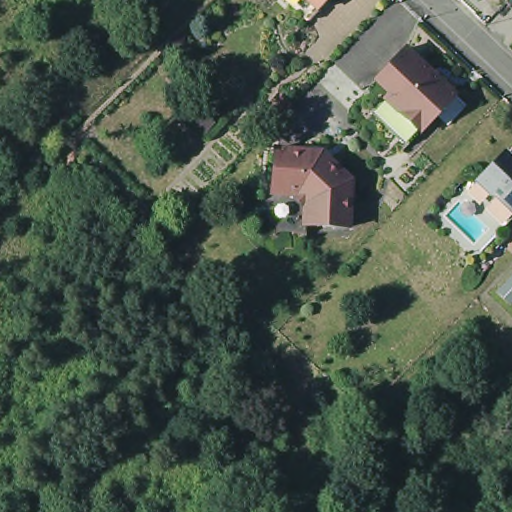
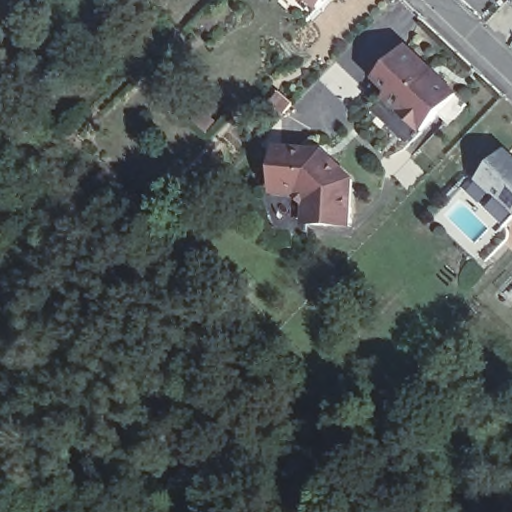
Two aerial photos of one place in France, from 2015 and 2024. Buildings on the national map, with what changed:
unchanged [(293,0),(327,0),(321,6),(310,17),(293,0)]
unchanged [(458,98),(422,135),(401,114),(406,109),(376,80),(407,49),(458,98)]
unchanged [(324,151),(354,181),(352,230),(304,227),(306,206),(303,207),(296,201),(299,199),(271,196),(274,149),(324,151)]
unchanged [(512,221),(477,187),(489,175),(512,151),(512,221)]
unchanged [(512,277),(512,301),(500,290),(512,277)]

